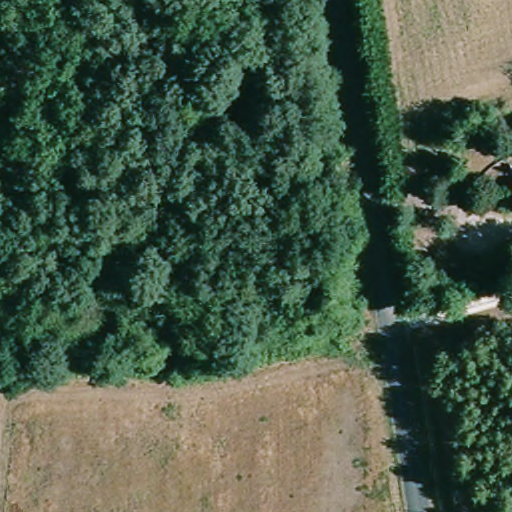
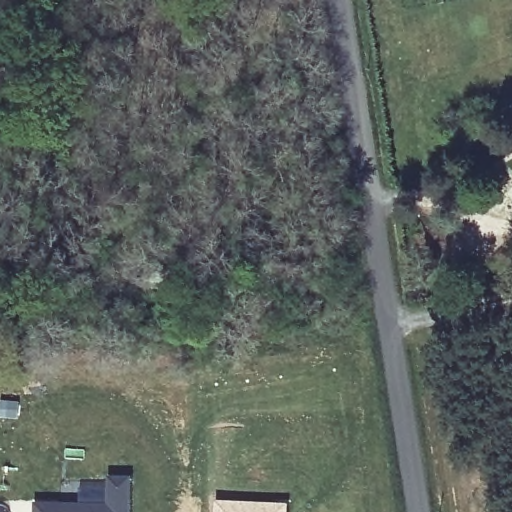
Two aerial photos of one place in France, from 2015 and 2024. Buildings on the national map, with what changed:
new [(78,500),(79,479),(105,479),(105,474),(132,475),(131,512),(32,512),(32,499),(78,500)]
new [(284,506),(284,512),(216,512),(216,502),(284,506)]

